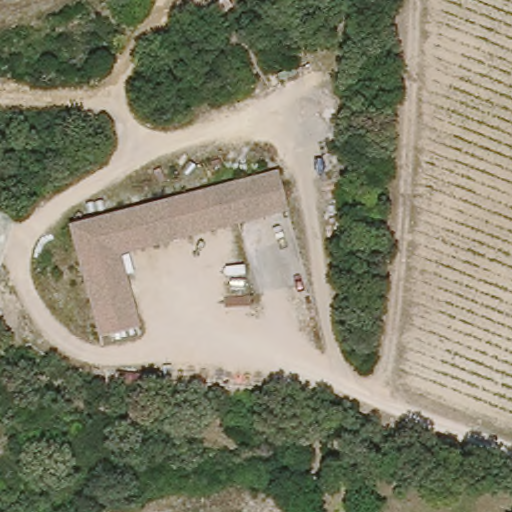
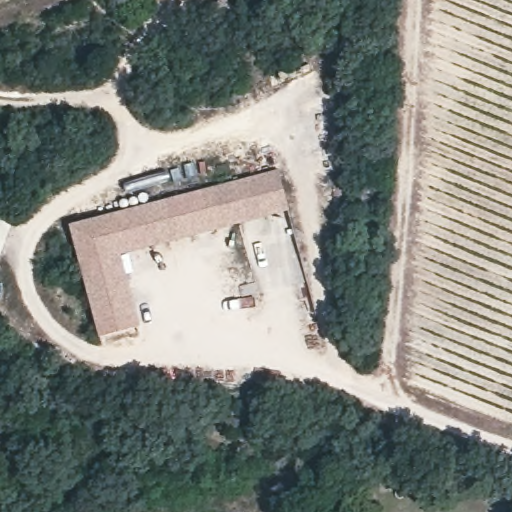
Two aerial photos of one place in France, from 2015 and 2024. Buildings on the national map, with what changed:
unchanged [(100,337),(76,227),(281,182),(289,216),(117,254),(132,329),(100,337)]

